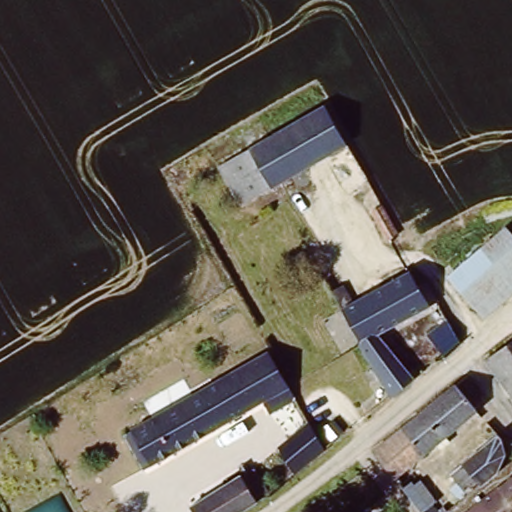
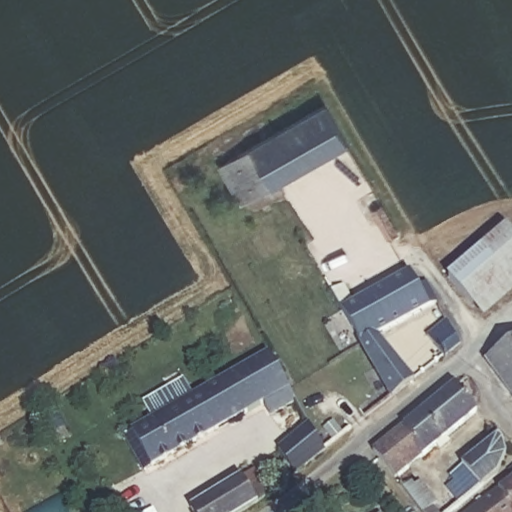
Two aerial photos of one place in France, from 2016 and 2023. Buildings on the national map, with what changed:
unchanged [(222,172),(217,162),(245,147),(262,137),(322,105),(349,151),(324,165),(272,194),(270,190),(242,206),(222,172)]
unchanged [(400,230),(387,237),(375,217),(389,210),(400,230)]
unchanged [(512,232),(512,286),(485,310),(451,272),(505,225),(512,232)]
unchanged [(438,300),(384,337),(412,374),(388,394),(365,352),(330,292),(344,284),(352,298),(405,268),(415,286),(426,280),(438,300)]
unchanged [(440,347),(428,328),(445,317),(455,334),(440,347)]
unchanged [(512,338),(512,388),(488,357),(512,338)]
unchanged [(274,411),(268,402),(150,470),(129,432),(270,349),(293,390),(297,397),(274,411)]
unchanged [(399,474),(379,447),(456,382),(477,408),(399,474)]
unchanged [(284,447),(310,423),(315,432),(342,416),(350,429),(325,450),(299,471),(284,447)]
unchanged [(445,485),(455,477),(452,472),(489,442),(480,431),(487,426),(491,423),(504,449),(504,461),(497,474),(469,496),(460,502),(445,485)]
unchanged [(235,478),(245,472),(252,482),(257,479),(267,493),(252,503),(238,512),(184,512),(183,510),(235,478)]
unchanged [(512,512),(461,512),(512,473),(512,512)]
unchanged [(410,474),(415,481),(421,476),(437,496),(431,501),(440,512),(429,512),(404,480),(410,474)]
unchanged [(452,504),(445,510),(440,502),(446,497),(452,504)]
unchanged [(386,512),(381,512),(385,510),(386,512)]
unchanged [(447,512),(442,512),(445,510),(447,512)]

